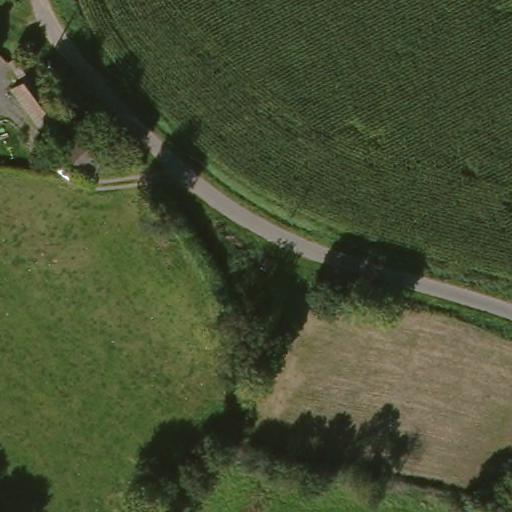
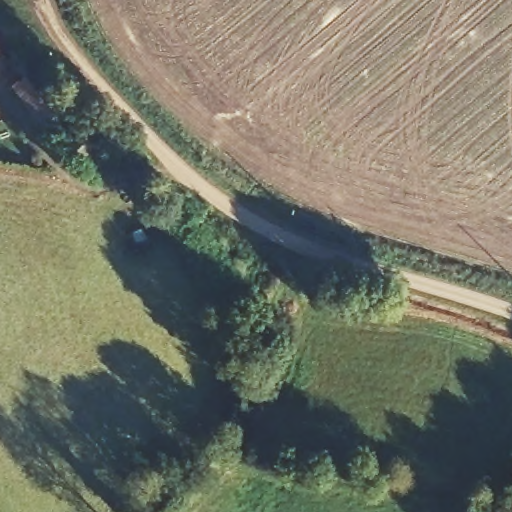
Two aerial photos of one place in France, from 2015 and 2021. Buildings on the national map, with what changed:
unchanged [(2,53),(0,54),(0,51),(2,53)]
unchanged [(29,66),(65,123),(44,137),(38,128),(30,114),(12,87),(21,81),(8,61),(18,55),(20,54),(29,66)]
unchanged [(115,149),(82,176),(57,143),(91,118),(115,149)]

